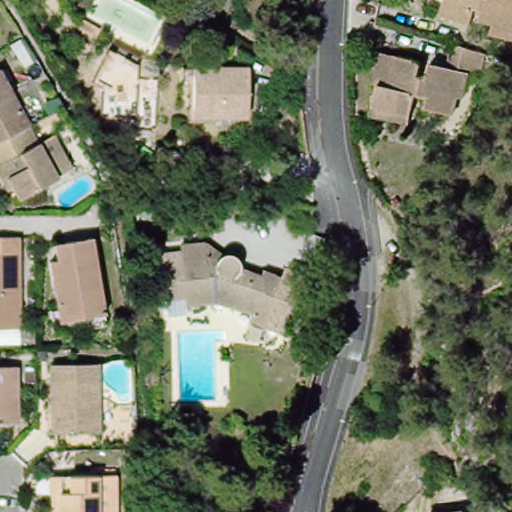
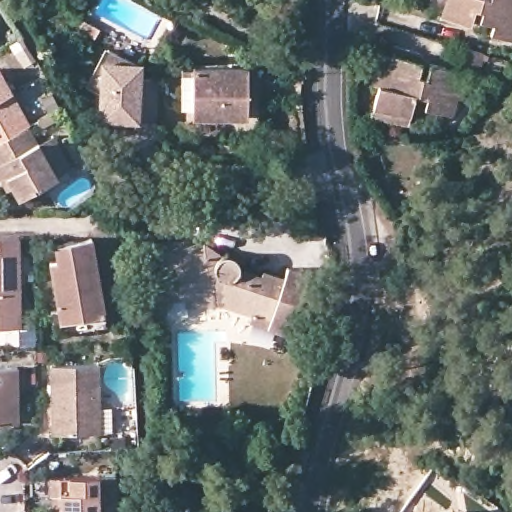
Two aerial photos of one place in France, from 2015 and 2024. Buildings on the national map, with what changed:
unchanged [(443,4),(444,0),(475,0),(471,13),(443,4)]
unchanged [(493,24),(496,13),(482,9),(485,1),(480,0),(512,0),(512,30),(493,24)]
unchanged [(98,37),(80,27),(85,19),(102,29),(98,37)]
unchanged [(371,102),(376,79),(371,78),(378,47),(393,50),(419,57),(415,71),(424,73),(427,59),(446,63),(451,40),(483,49),(477,72),(466,69),(460,92),(454,91),(450,110),(421,104),(423,92),(413,90),(407,110),(405,119),(369,111),(371,102)]
new [(135,62),(144,63),(143,79),(158,79),(158,129),(136,129),(136,123),(100,121),(100,92),(86,85),(105,49),(135,62)]
unchanged [(232,117),(190,116),(190,89),(178,89),(178,68),(191,68),(242,69),(242,101),(242,117),(232,117)]
unchanged [(0,73),(24,115),(0,130),(0,73)]
unchanged [(39,121),(56,111),(60,118),(43,127),(39,121)]
unchanged [(0,148),(28,132),(38,149),(53,141),(71,173),(57,181),(20,204),(15,194),(8,197),(3,188),(0,183),(0,148)]
unchanged [(55,305),(48,267),(46,256),(53,255),(51,240),(88,234),(100,309),(103,322),(51,332),(47,307),(55,305)]
unchanged [(248,313),(211,301),(183,305),(181,297),(159,299),(153,254),(176,252),(176,245),(198,242),(218,256),(222,254),(227,254),(231,256),(234,258),(236,263),(236,269),(259,276),(261,272),(280,278),(284,267),(303,273),(295,301),(275,295),(269,311),(265,327),(246,320),(248,313)]
unchanged [(20,327),(0,328),(0,252),(18,251),(20,327)]
unchanged [(18,420),(0,420),(0,363),(16,363),(18,420)]
unchanged [(48,438),(46,370),(94,369),(95,437),(48,438)]
unchanged [(117,512),(90,512),(89,476),(116,475),(117,512)]
unchanged [(43,492),(43,476),(89,476),(90,512),(45,512),(45,494),(43,492)]

